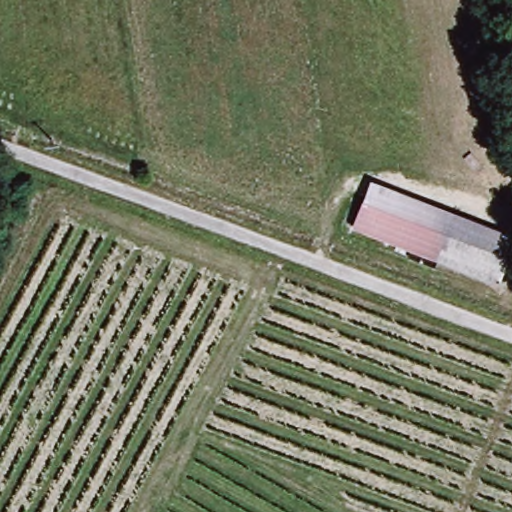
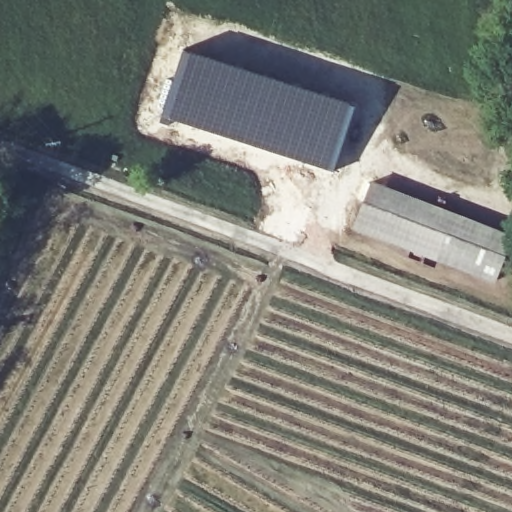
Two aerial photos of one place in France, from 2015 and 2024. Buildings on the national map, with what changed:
new [(182,48),(269,73),(354,102),(332,171),(201,129),(160,117),(182,48)]
unchanged [(444,234),(362,200),(370,179),(509,232),(501,256),(444,234)]
unchanged [(351,225),(362,200),(444,234),(435,259),(351,225)]
unchanged [(490,281),(435,259),(444,234),(501,256),(490,281)]

